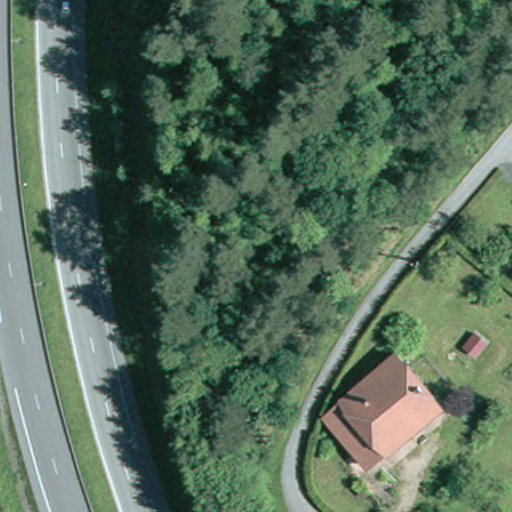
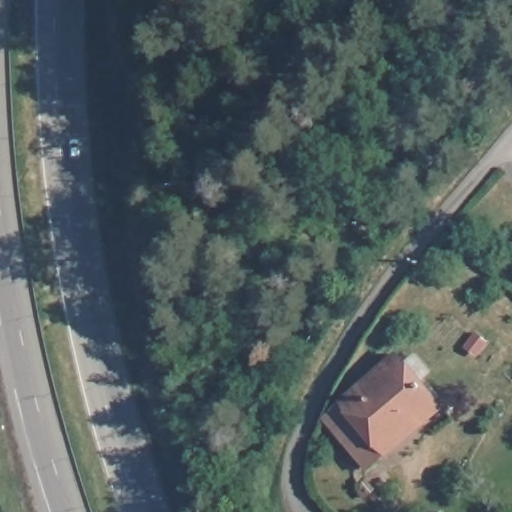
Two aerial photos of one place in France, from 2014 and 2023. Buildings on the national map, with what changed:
unchanged [(397,352),(440,407),(367,467),(322,412),(397,352)]

